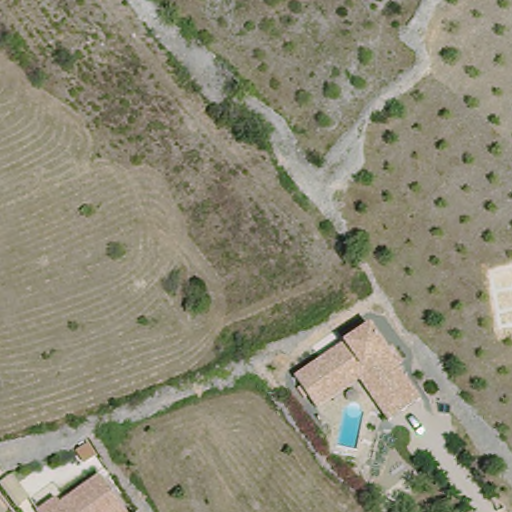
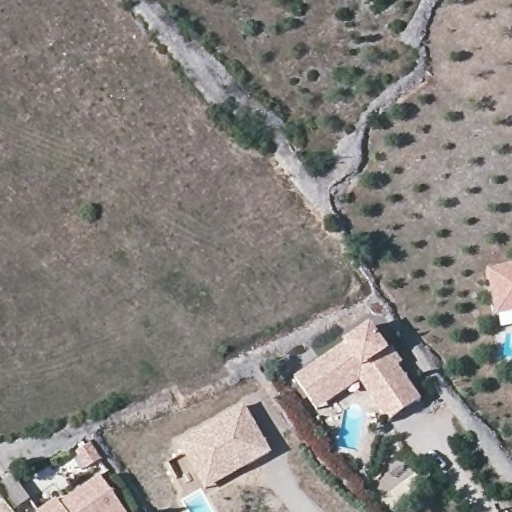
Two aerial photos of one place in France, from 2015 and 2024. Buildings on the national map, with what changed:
unchanged [(501,315),(494,272),(512,269),(512,313),(501,315)]
unchanged [(360,326),(416,400),(388,422),(360,382),(317,415),(291,382),(360,326)]
new [(201,483),(179,446),(243,408),(270,455),(247,468),(206,492),(201,483)]
unchanged [(50,502),(55,507),(93,482),(113,512),(35,512),(50,502)]

